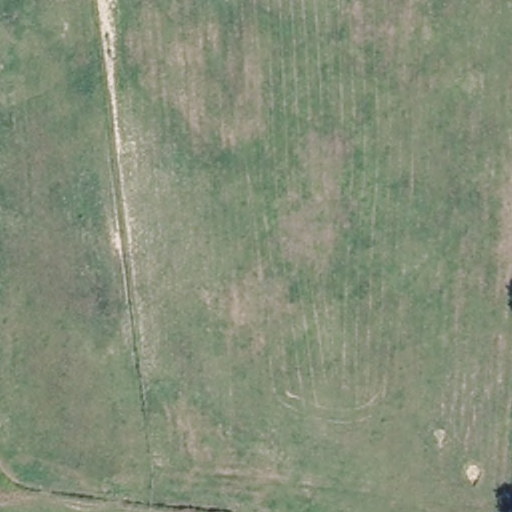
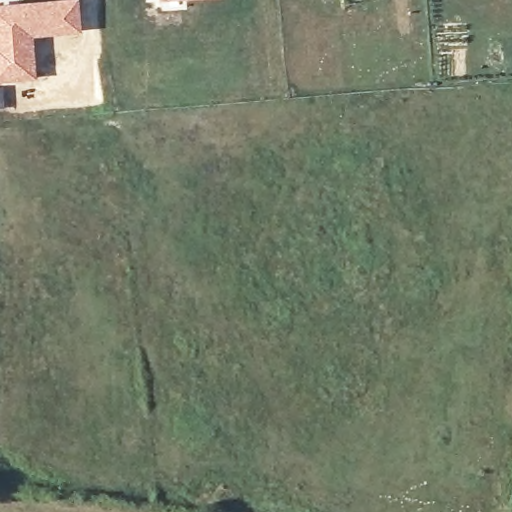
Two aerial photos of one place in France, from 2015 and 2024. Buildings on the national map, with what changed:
new [(77,0),(81,33),(33,36),(35,79),(2,83),(5,108),(0,109),(0,3),(31,0),(77,0)]

